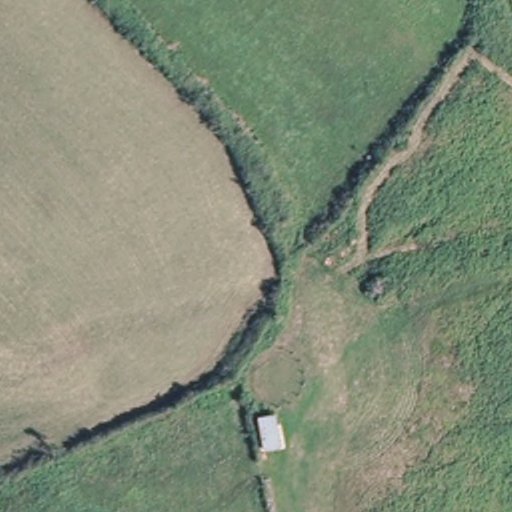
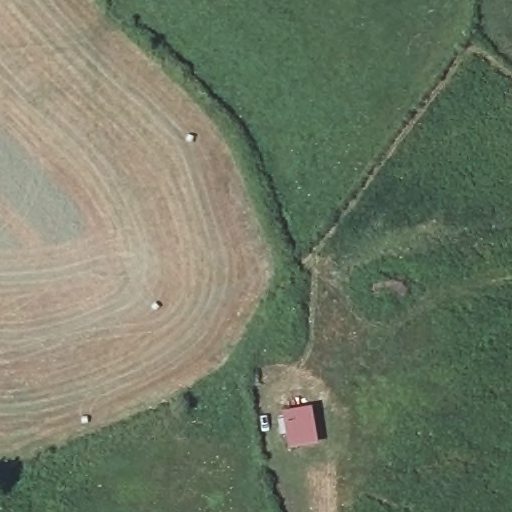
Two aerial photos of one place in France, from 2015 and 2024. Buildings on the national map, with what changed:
new [(282,411),(312,406),(318,443),(287,447),(282,411)]

